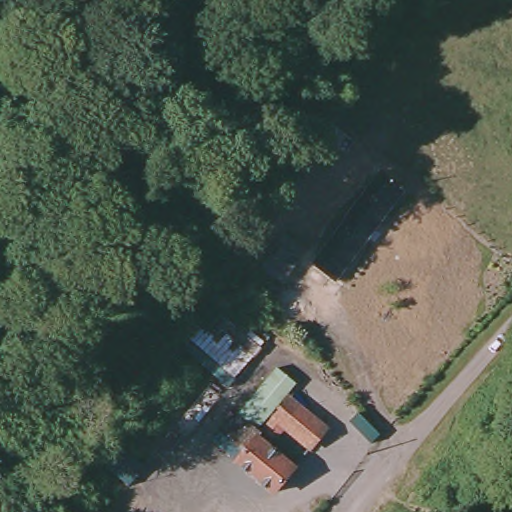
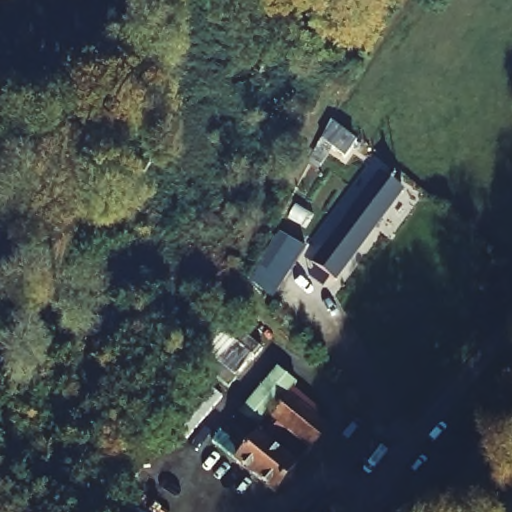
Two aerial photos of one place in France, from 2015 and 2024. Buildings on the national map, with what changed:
unchanged [(350,219),(377,180),(398,195),(371,234),(362,228),(367,220),(358,214),(352,221),(350,219)]
unchanged [(338,243),(352,221),(358,214),(367,220),(362,228),(371,234),(339,279),(321,267),(331,253),(338,243)]
new [(278,231),(306,249),(275,299),(247,281),(278,231)]
unchanged [(286,398),(327,426),(305,455),(265,426),(286,398)]
unchanged [(235,416),(298,469),(275,504),(214,444),(235,416)]

